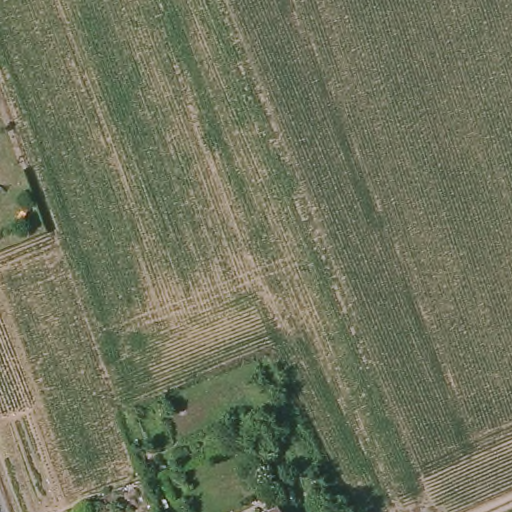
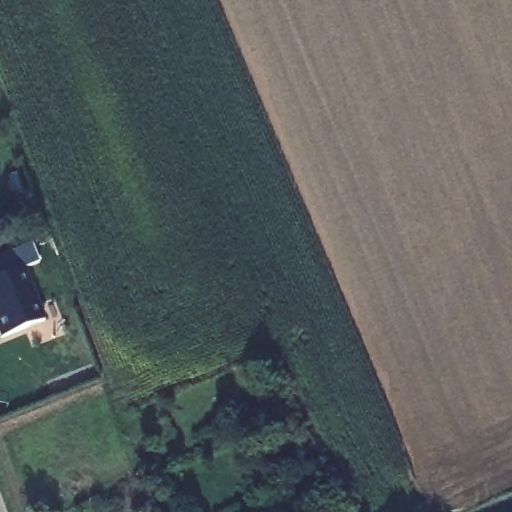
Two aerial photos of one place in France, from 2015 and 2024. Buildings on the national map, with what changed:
new [(43,321),(0,338),(0,337),(0,279),(23,270),(43,321)]
unchanged [(276,510),(276,512),(273,512),(276,510)]

